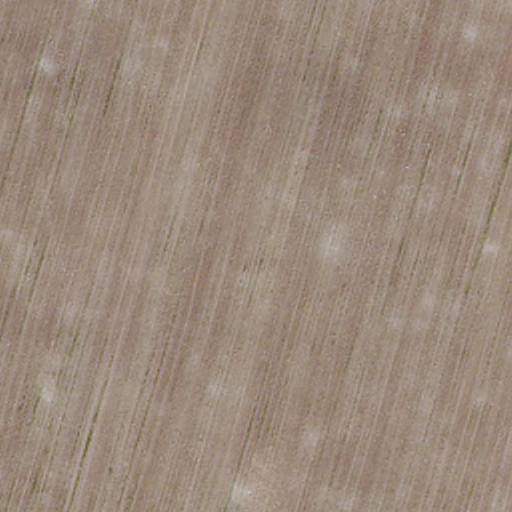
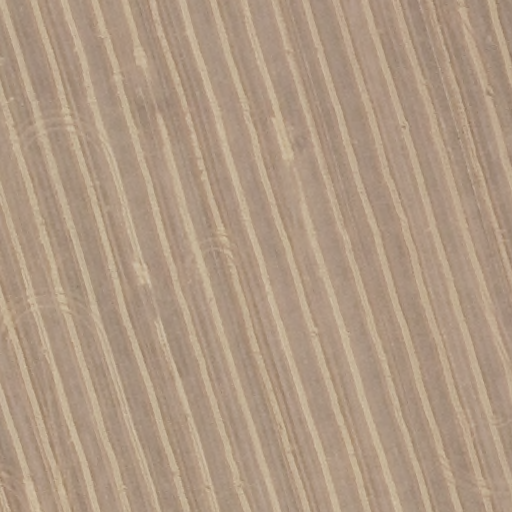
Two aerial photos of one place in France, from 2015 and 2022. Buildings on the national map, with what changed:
[]

